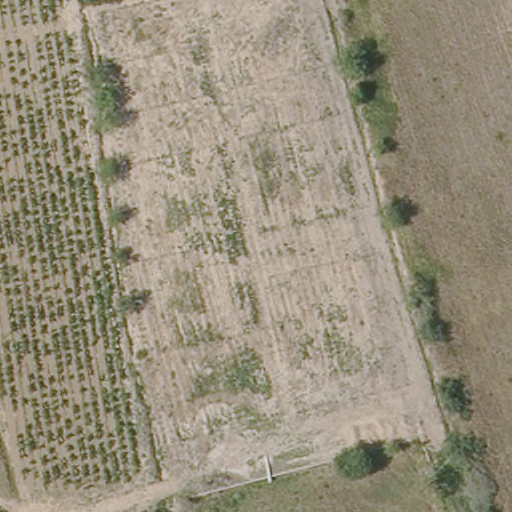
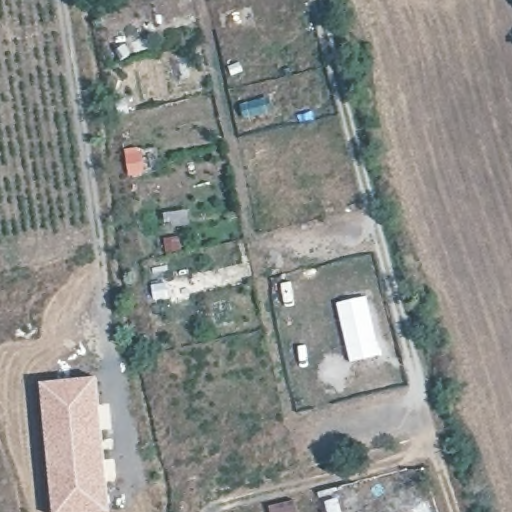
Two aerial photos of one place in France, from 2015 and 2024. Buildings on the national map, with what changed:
new [(350,362),(337,303),(368,299),(379,357),(350,362)]
new [(98,377),(111,512),(54,512),(41,384),(98,377)]

